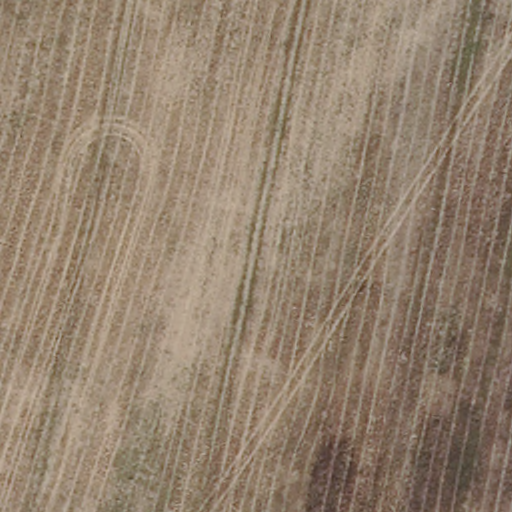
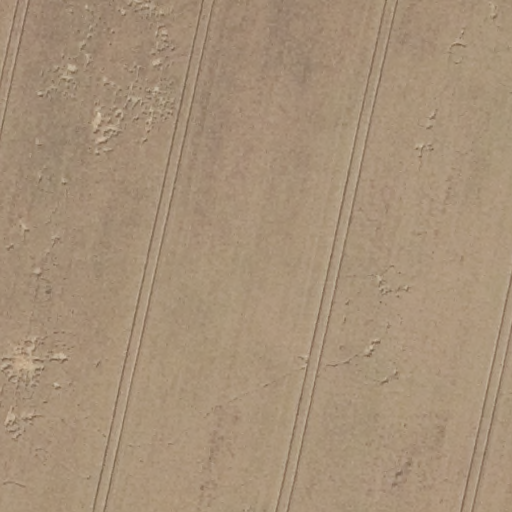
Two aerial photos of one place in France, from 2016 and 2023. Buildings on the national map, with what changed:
[]

